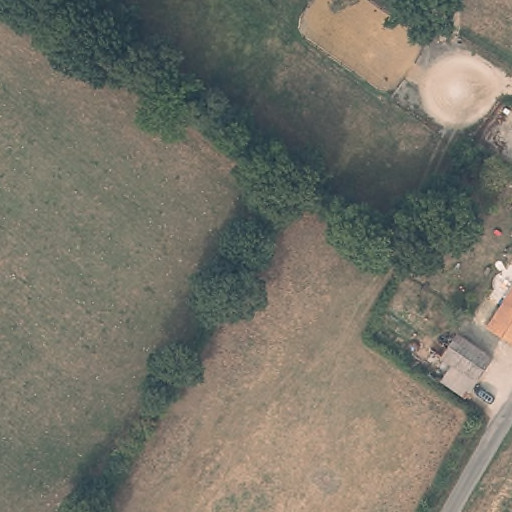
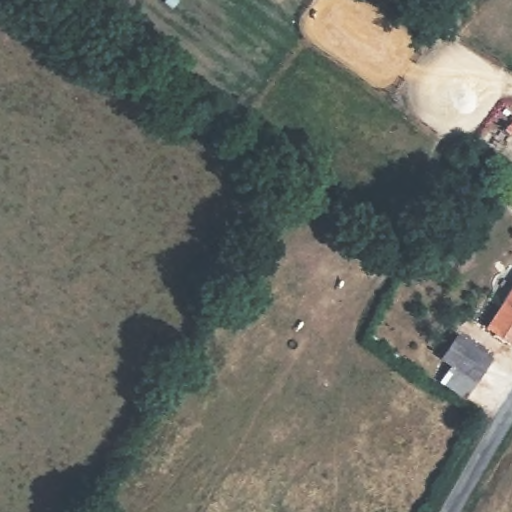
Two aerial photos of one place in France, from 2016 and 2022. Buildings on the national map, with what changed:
unchanged [(512,290),(512,355),(511,356),(482,337),(512,290)]
unchanged [(452,367),(443,362),(458,337),(493,358),(467,399),(442,384),(452,367)]

